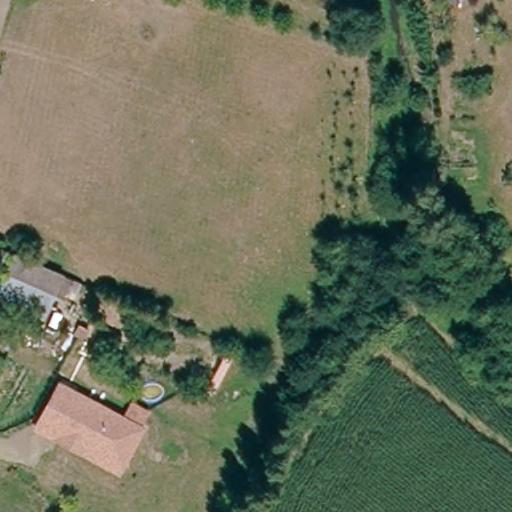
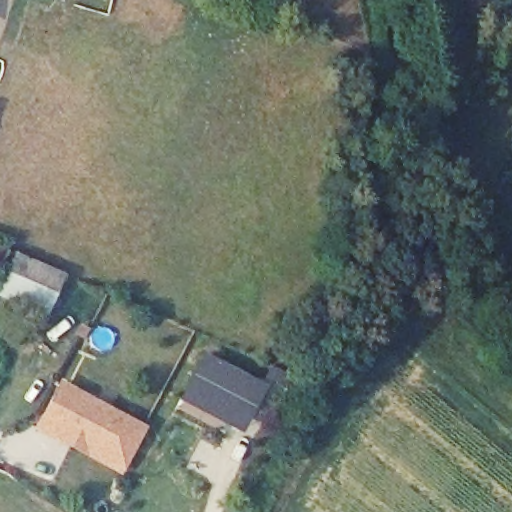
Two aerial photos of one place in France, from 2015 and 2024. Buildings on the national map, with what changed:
unchanged [(47,315),(3,295),(15,266),(59,286),(47,315)]
new [(203,351),(269,383),(244,436),(177,402),(203,351)]
unchanged [(35,430),(39,425),(59,386),(141,430),(120,468),(118,474),(35,430)]

